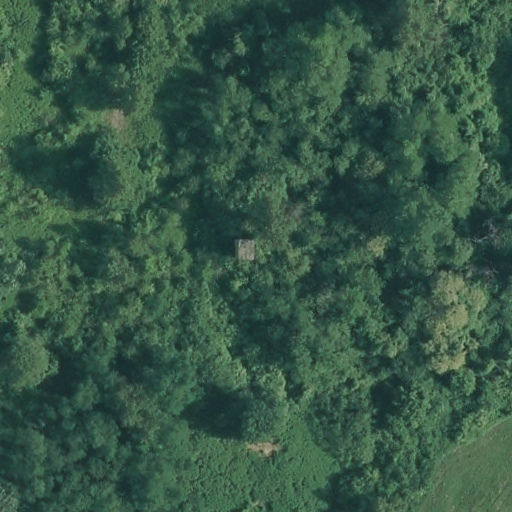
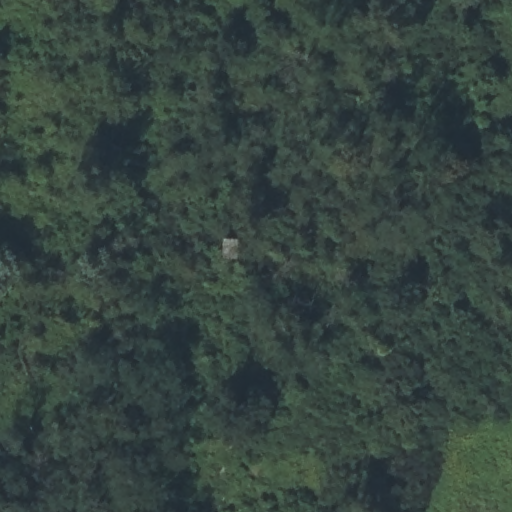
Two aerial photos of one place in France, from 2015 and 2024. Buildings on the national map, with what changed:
unchanged [(243,256),(225,257),(227,234),(244,232),(243,256)]

